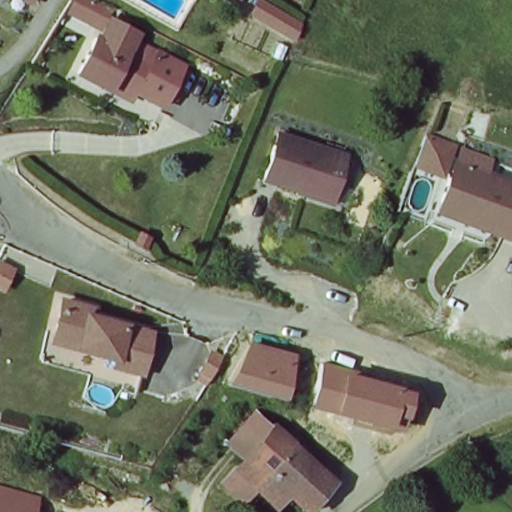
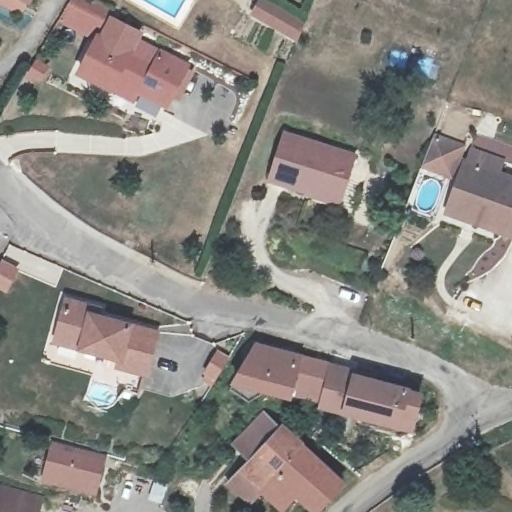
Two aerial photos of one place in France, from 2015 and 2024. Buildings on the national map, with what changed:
new [(318,25),(310,40),(270,20),(265,18),(274,2),(277,4),(318,25)]
unchanged [(108,86),(79,72),(97,35),(153,62),(158,51),(165,55),(182,64),(165,103),(147,95),(135,88),(130,97),(108,86)]
unchanged [(352,161),(346,189),(333,196),(313,189),(311,195),(277,184),(287,139),(352,161)]
unchanged [(440,149),(463,159),(455,185),(432,175),(440,149)]
unchanged [(512,193),(512,249),(502,245),(505,235),(453,214),(465,174),(512,193)]
unchanged [(100,320),(100,322),(157,336),(144,381),(120,372),(122,365),(85,352),(87,348),(57,337),(70,307),(100,320)]
unchanged [(305,355),(292,402),(232,387),(256,343),(305,355)]
unchanged [(330,365),(355,373),(423,392),(417,421),(412,433),(395,436),(358,428),(360,420),(318,410),(330,365)]
unchanged [(319,512),(301,495),(287,510),(269,492),(256,505),(235,487),(257,464),(242,450),(272,419),(347,485),(321,512),(319,512)]
new [(40,483),(52,442),(105,455),(95,498),(40,483)]
unchanged [(41,512),(0,512),(0,487),(45,498),(41,512)]

